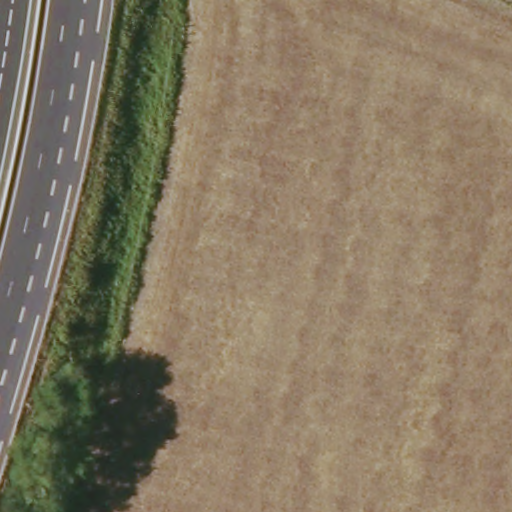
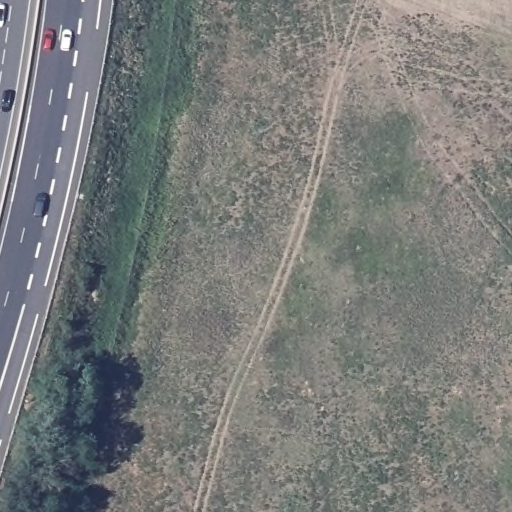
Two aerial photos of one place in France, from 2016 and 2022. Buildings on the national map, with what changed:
[]

